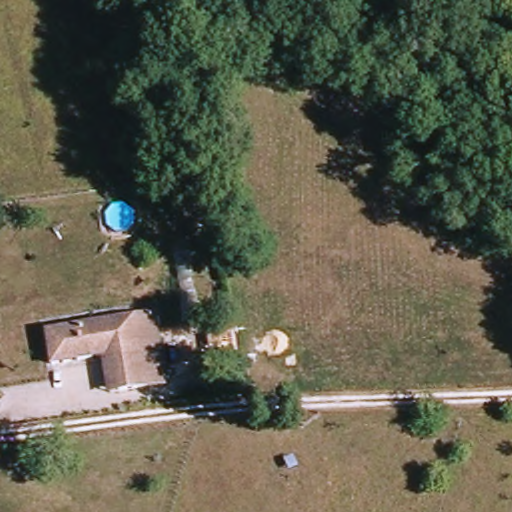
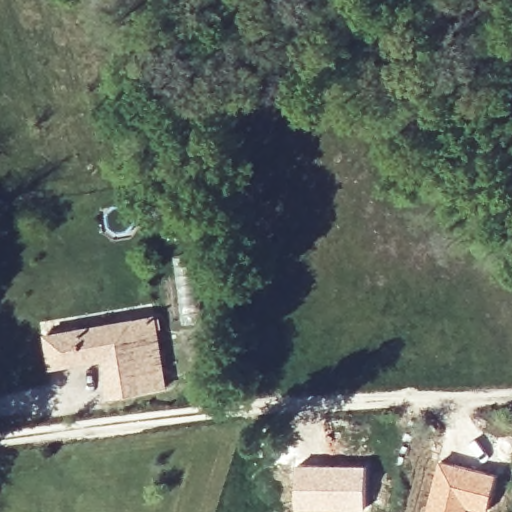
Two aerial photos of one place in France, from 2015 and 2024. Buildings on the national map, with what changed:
unchanged [(72,360),(69,328),(153,318),(158,350),(121,354),(72,360)]
new [(236,339),(241,370),(216,374),(211,343),(236,339)]
unchanged [(165,398),(127,403),(121,354),(158,350),(165,398)]
new [(439,458),(498,472),(488,511),(469,507),(468,512),(426,512),(439,458)]
new [(297,462),(367,463),(366,510),(296,508),(297,462)]

